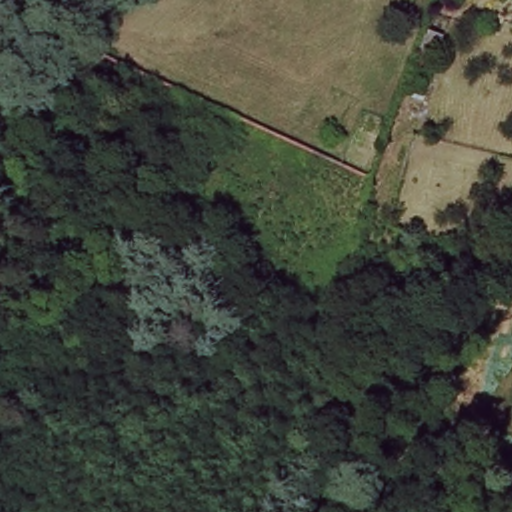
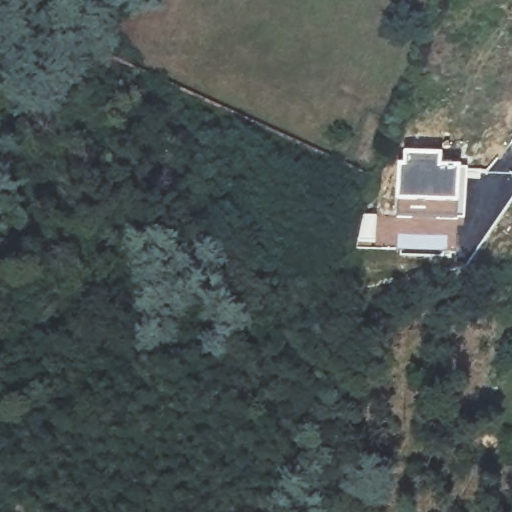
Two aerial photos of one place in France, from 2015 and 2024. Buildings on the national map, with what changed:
new [(363,214),(393,215),(398,162),(403,162),(403,151),(444,152),(444,165),(470,167),(467,224),(459,223),(457,256),(399,255),(399,251),(358,248),(363,214)]

